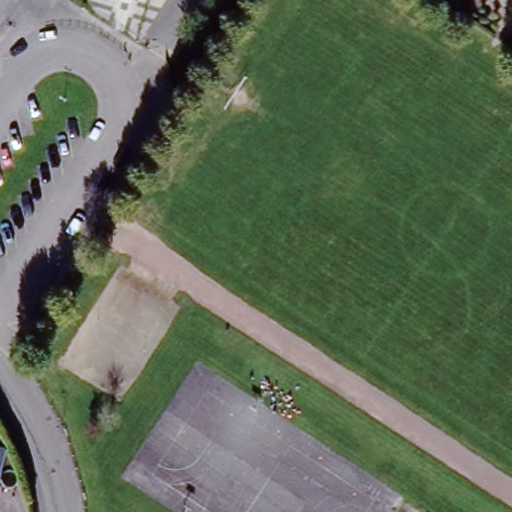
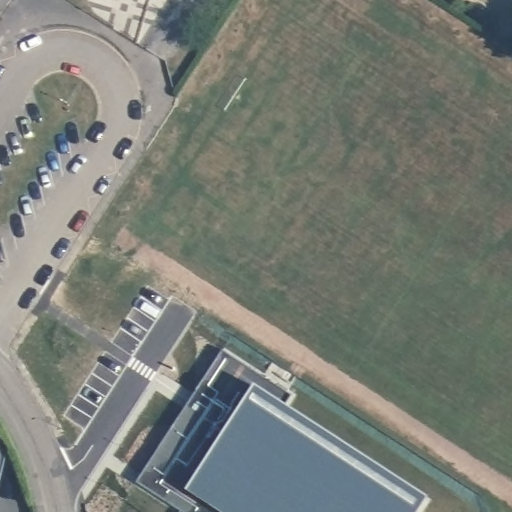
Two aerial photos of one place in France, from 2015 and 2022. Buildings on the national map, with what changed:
new [(224,350),(293,390),(284,402),(424,499),(415,512),(179,512),(141,483),(138,477),(224,350)]
new [(4,440),(2,449),(8,450),(0,486),(0,439),(4,440)]

